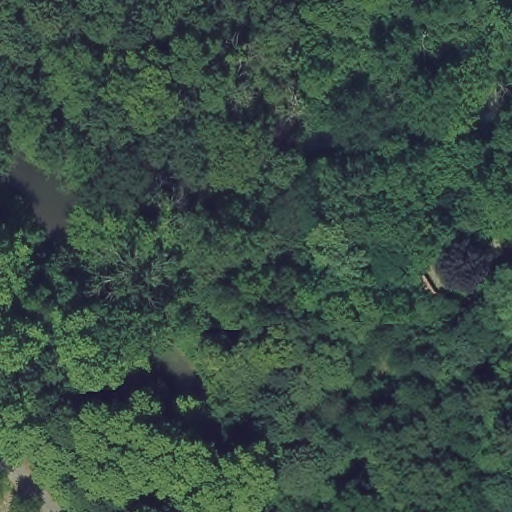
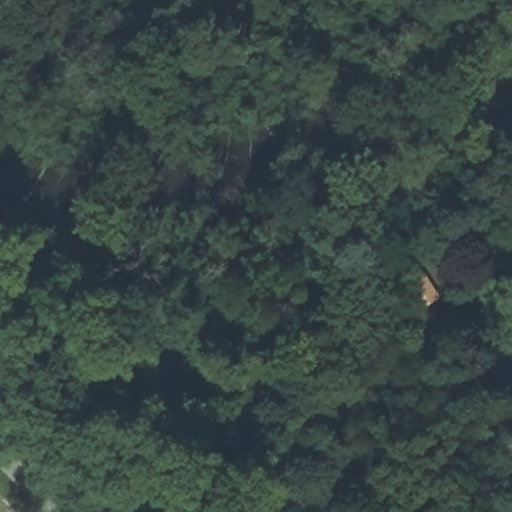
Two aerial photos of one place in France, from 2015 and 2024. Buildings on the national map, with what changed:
unchanged [(443,297),(419,313),(393,273),(417,261),(443,297)]

